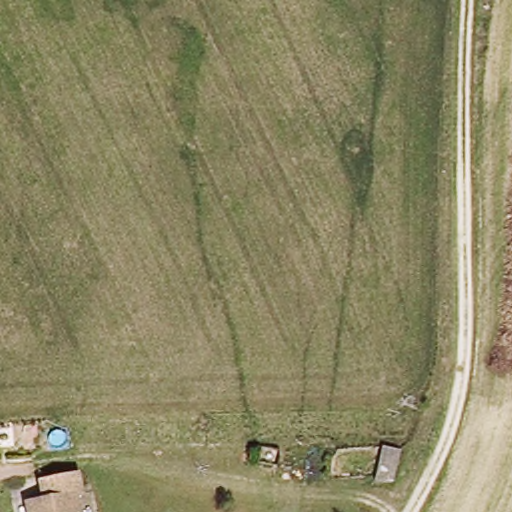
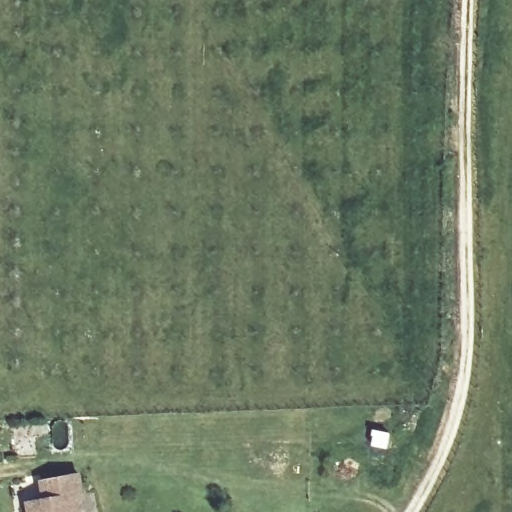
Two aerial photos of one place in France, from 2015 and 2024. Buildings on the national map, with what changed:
unchanged [(30,503),(38,502),(47,500),(43,482),(81,475),(84,494),(79,495),(82,512),(31,512),(30,503)]

